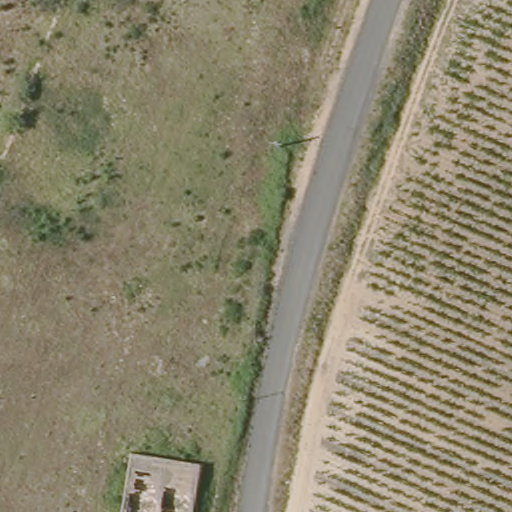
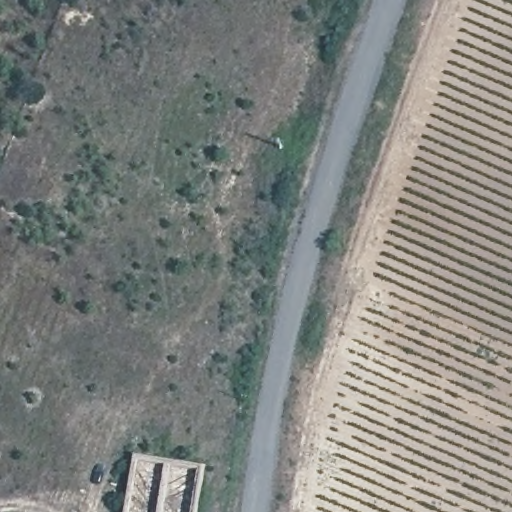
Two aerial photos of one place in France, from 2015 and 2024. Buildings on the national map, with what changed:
unchanged [(205,462),(198,512),(122,512),(130,453),(205,462)]

